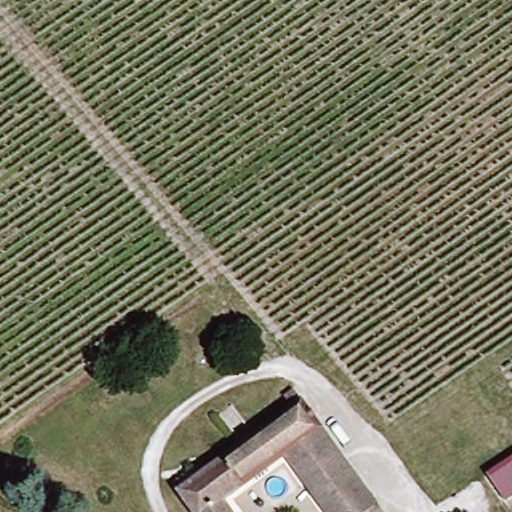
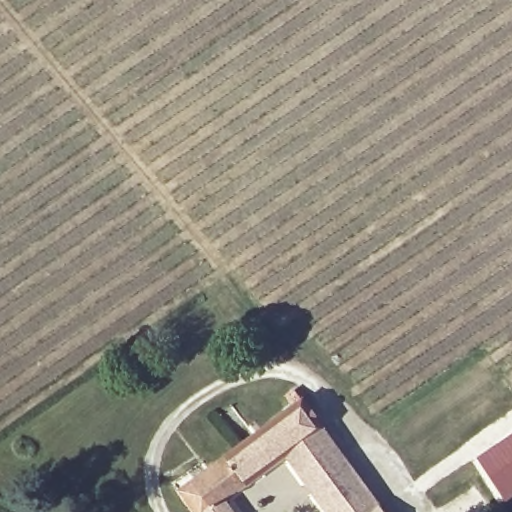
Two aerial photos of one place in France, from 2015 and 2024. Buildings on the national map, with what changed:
unchanged [(372,503),(361,512),(322,512),(282,455),(218,499),(228,512),(188,512),(174,493),(298,400),(348,468),(372,503)]
unchanged [(512,455),(512,495),(506,500),(487,472),(512,455)]
unchanged [(361,512),(372,503),(380,512),(361,512)]

